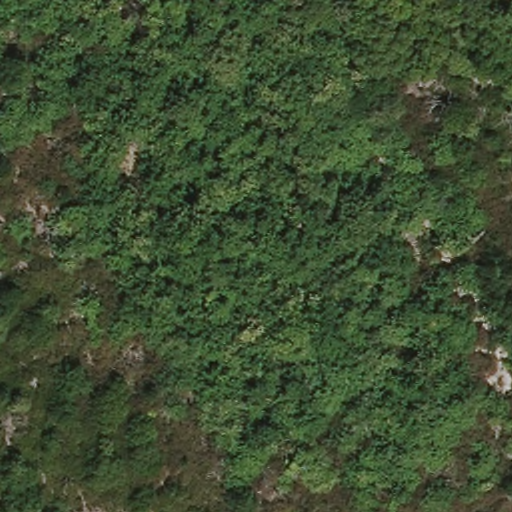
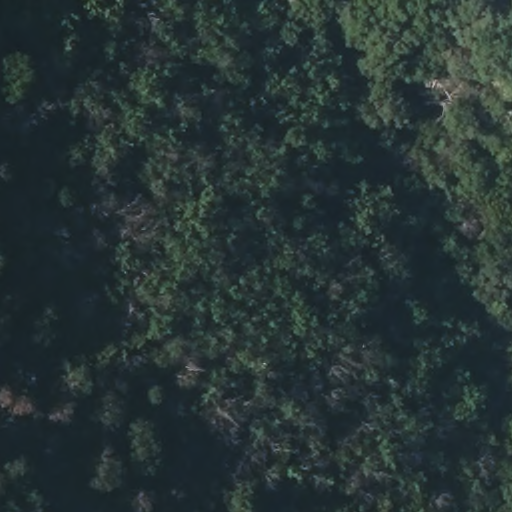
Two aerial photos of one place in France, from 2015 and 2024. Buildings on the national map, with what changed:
unchanged [(512,213),(512,221),(495,231),(479,207),(502,194),(512,213)]

